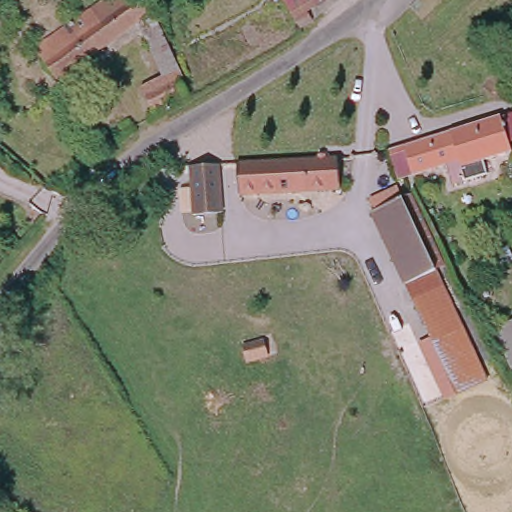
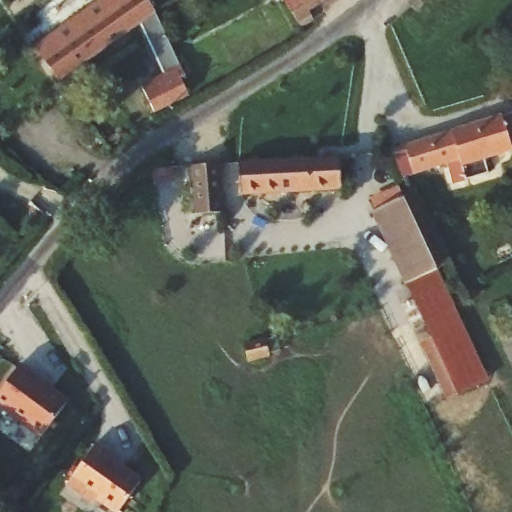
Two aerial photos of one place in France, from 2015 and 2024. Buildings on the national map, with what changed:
unchanged [(152,5),(153,6),(184,75),(180,78),(183,86),(188,96),(156,111),(143,85),(163,75),(138,20),(53,75),(30,42),(96,0),(148,0),(152,5)]
unchanged [(306,11),(313,22),(303,29),(285,0),(324,0),(306,11)]
unchanged [(512,109),(512,148),(496,154),(484,118),(512,109)]
unchanged [(468,158),(458,128),(484,118),(496,154),(469,163),(468,158)]
unchanged [(400,147),(458,128),(468,158),(414,178),(400,147)]
unchanged [(339,157),(339,184),(240,191),(238,164),(339,157)]
unchanged [(218,166),(221,213),(193,215),(192,198),(190,166),(218,166)]
unchanged [(456,394),(369,207),(413,186),(449,266),(440,270),(486,379),(456,394)]
unchanged [(204,241),(195,227),(203,222),(213,237),(204,241)]
new [(68,400),(39,439),(0,410),(0,391),(19,365),(68,400)]
new [(105,456),(141,480),(118,512),(110,512),(93,501),(91,505),(64,488),(94,444),(109,452),(105,456)]

